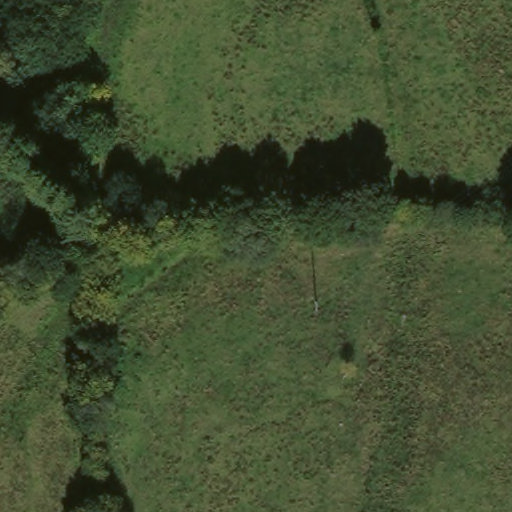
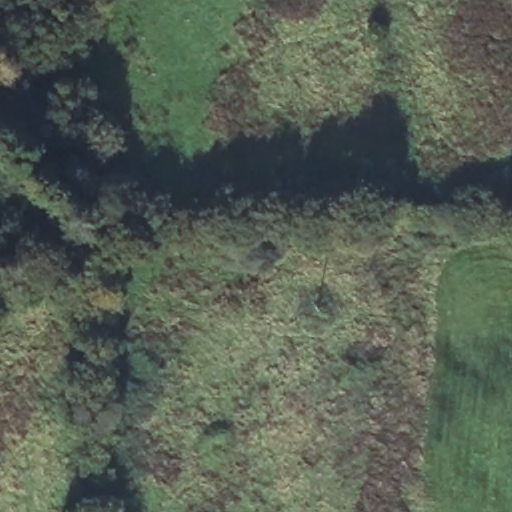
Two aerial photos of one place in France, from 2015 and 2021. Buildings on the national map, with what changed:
[]

